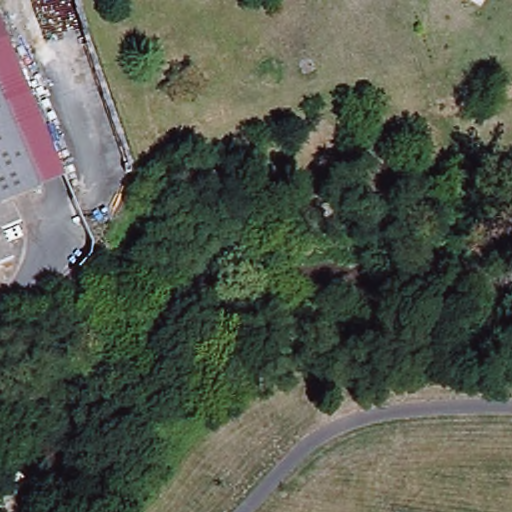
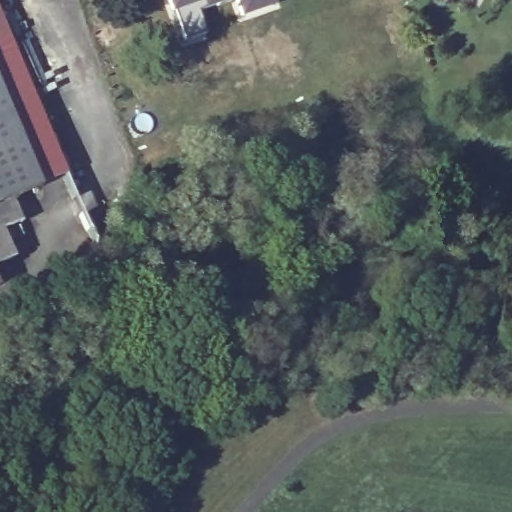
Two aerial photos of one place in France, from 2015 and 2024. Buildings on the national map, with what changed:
new [(194,11),(203,33),(181,41),(169,10),(165,0),(196,0),(223,0),(194,11)]
new [(270,0),(239,13),(233,0),(270,0)]
unchanged [(34,194),(10,204),(0,208),(0,112),(34,194)]
unchanged [(10,204),(17,223),(0,230),(0,208),(10,204)]
unchanged [(9,260),(0,263),(0,238),(9,260)]

